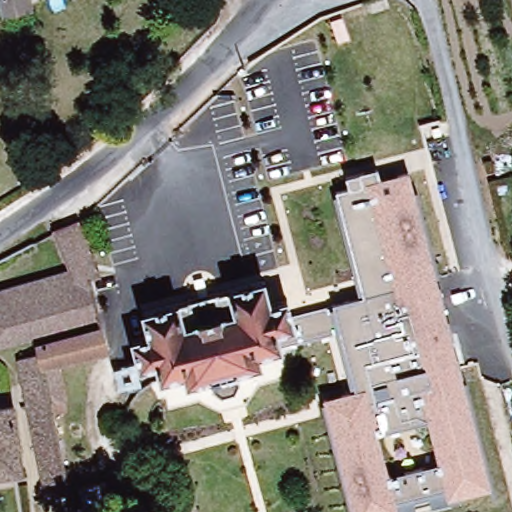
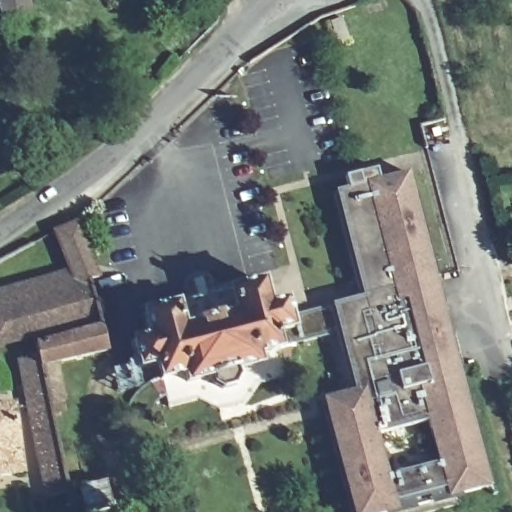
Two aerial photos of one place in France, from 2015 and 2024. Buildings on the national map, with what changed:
unchanged [(27,0),(30,11),(1,17),(0,12),(0,0),(27,0)]
unchanged [(322,396),(353,389),(333,306),(358,298),(333,193),(347,189),(345,175),(376,166),(379,180),(410,170),(490,490),(405,512),(351,512),(322,396)]
unchanged [(66,271),(52,229),(75,221),(93,276),(86,278),(69,283),(66,271)]
unchanged [(66,271),(69,283),(0,301),(0,289),(66,271)]
unchanged [(0,343),(0,301),(69,283),(86,278),(96,318),(0,343)]
unchanged [(138,311),(176,301),(230,287),(261,279),(264,290),(264,298),(266,299),(268,303),(284,299),(292,330),(276,334),(280,350),(273,353),(278,373),(187,385),(182,370),(156,377),(153,365),(138,369),(130,338),(144,334),(138,311)]
unchanged [(41,491),(25,403),(17,357),(35,354),(33,344),(98,325),(105,348),(52,360),(58,398),(59,410),(46,412),(59,487),(41,491)]
unchanged [(182,370),(187,385),(278,373),(273,353),(280,350),(288,378),(256,386),(242,408),(220,414),(199,402),(164,411),(156,377),(182,370)]
unchanged [(21,476),(0,479),(0,414),(14,412),(21,476)]

